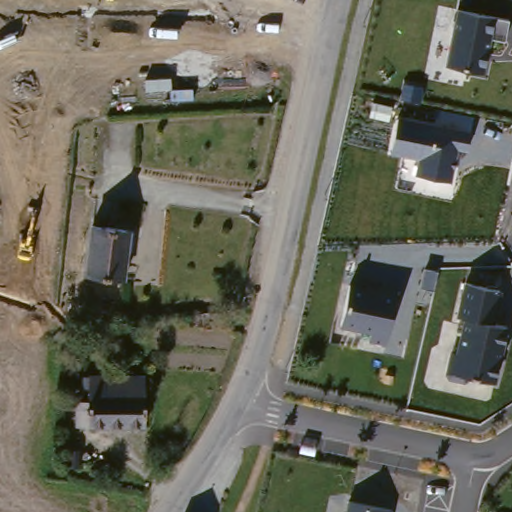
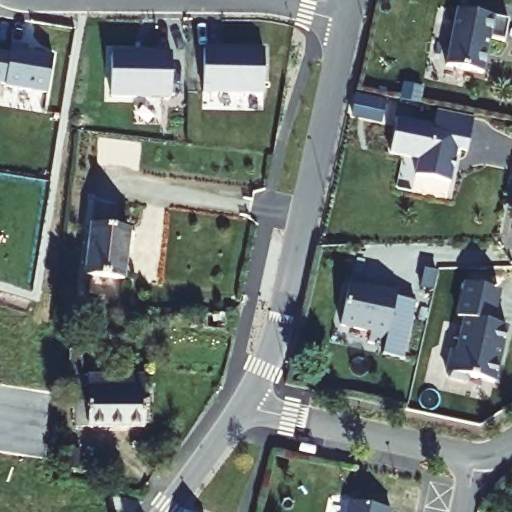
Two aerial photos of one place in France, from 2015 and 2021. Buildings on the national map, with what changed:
unchanged [(454,8),(508,19),(504,45),(491,41),(485,75),(443,66),(454,8)]
new [(114,51),(174,52),(174,96),(112,95),(114,51)]
new [(264,96),(203,95),(204,51),(266,52),(264,96)]
unchanged [(471,132),(466,154),(457,152),(451,183),(414,176),(415,161),(391,155),(398,118),(471,132)]
unchanged [(137,229),(129,280),(88,275),(97,223),(137,229)]
unchanged [(397,291),(386,348),(364,346),(368,333),(338,328),(347,282),(397,291)]
unchanged [(504,291),(497,324),(508,327),(497,384),(474,379),(465,384),(444,380),(448,351),(457,348),(462,319),(455,318),(462,283),(504,291)]
unchanged [(160,376),(159,425),(93,423),(94,400),(105,400),(106,375),(160,376)]
unchanged [(345,500),(393,509),(393,512),(343,512),(345,500)]

